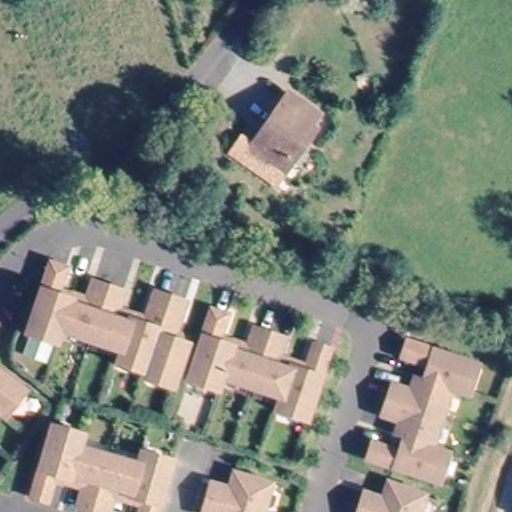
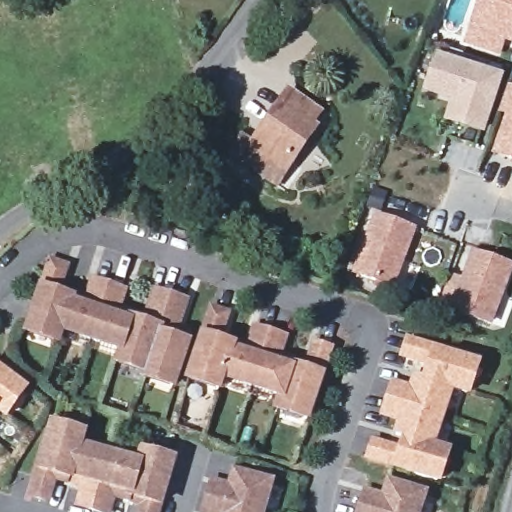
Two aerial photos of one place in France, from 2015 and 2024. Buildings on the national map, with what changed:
new [(497,60),(462,45),(477,0),(512,0),(512,47),(503,44),(497,60)]
new [(502,77),(483,136),(442,124),(450,102),(422,94),(435,55),(502,77)]
new [(512,163),(490,156),(503,118),(496,115),(505,88),(512,89),(512,163)]
unchanged [(268,161),(254,151),(290,90),(317,107),(307,127),(311,129),(297,156),(287,173),(268,161)]
new [(394,293),(347,276),(368,213),(416,229),(394,293)]
new [(471,250),(512,264),(512,272),(493,329),(437,310),(450,274),(462,279),(471,250)]
unchanged [(71,274),(61,300),(75,305),(76,300),(92,306),(98,288),(127,299),(121,317),(137,322),(135,327),(148,332),(160,298),(175,304),(173,309),(187,314),(176,346),(190,352),(176,391),(147,380),(149,376),(120,366),(123,357),(65,336),(62,345),(32,334),(55,268),(71,274)]
unchanged [(306,416),(277,406),(280,396),(221,375),(218,384),(189,374),(212,308),(227,313),(217,340),(232,345),(233,340),(249,346),(255,328),(285,339),(278,357),(295,362),(292,367),(306,372),(315,345),(329,350),(306,416)]
unchanged [(377,447),(403,456),(407,443),(399,440),(405,424),(387,418),(397,388),(415,394),(420,379),(428,382),(432,369),(406,359),(412,344),(477,367),(467,397),(455,392),(435,451),(447,456),(438,485),(372,462),(377,447)]
unchanged [(19,386),(0,410),(0,372),(19,386)]
unchanged [(117,495),(111,512),(106,512),(82,504),(87,486),(71,481),(72,476),(59,472),(51,499),(40,495),(35,494),(56,427),(57,428),(86,437),(82,446),(142,464),(145,455),(174,465),(160,512),(144,512),(146,505),(132,500),(117,495)]
unchanged [(217,486),(232,491),(237,475),(273,486),(265,512),(209,512),(217,486)]
unchanged [(369,496),(387,503),(392,486),(428,499),(423,512),(358,512),(364,495),(369,496)]

